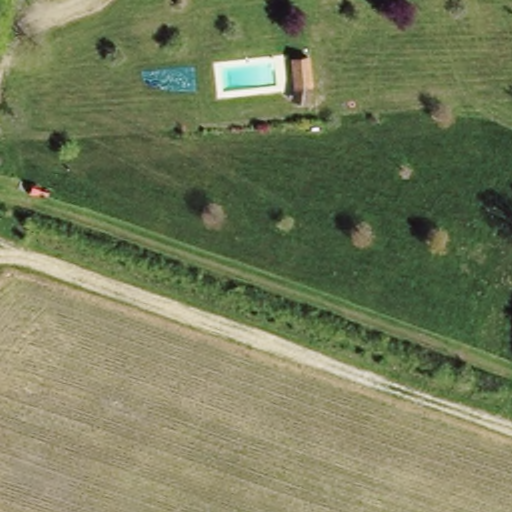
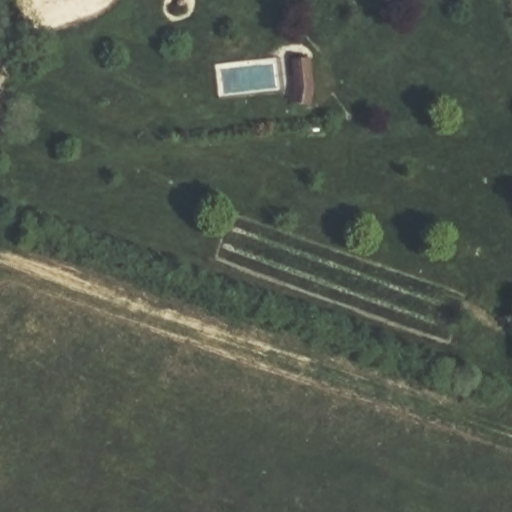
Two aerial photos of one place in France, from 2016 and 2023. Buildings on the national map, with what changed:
unchanged [(315,47),(320,86),(296,88),(291,53),(315,47)]

